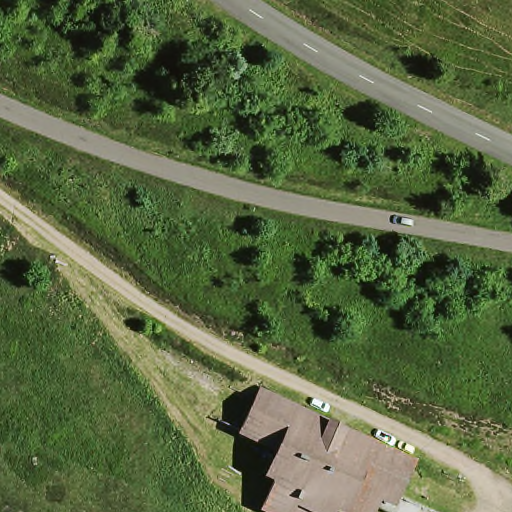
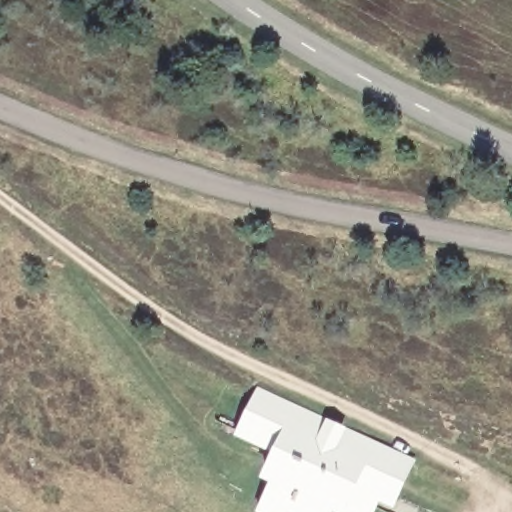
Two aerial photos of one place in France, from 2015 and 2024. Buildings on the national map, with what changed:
unchanged [(395,506),(379,501),(373,512),(334,512),(260,512),(257,510),(269,480),(260,477),(275,446),(236,433),(258,385),(415,456),(395,506)]

